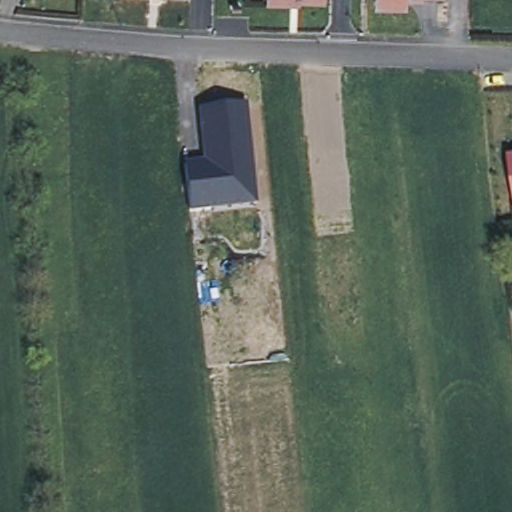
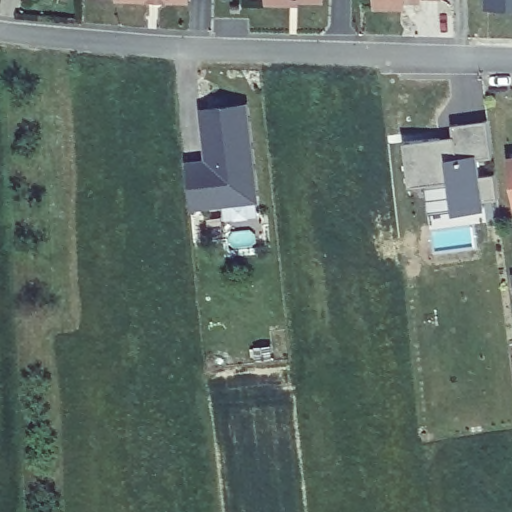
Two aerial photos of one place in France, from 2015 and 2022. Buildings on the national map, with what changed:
unchanged [(403,7),(377,6),(377,0),(419,0),(419,2),(404,1),(403,7)]
new [(485,9),(485,0),(512,0),(512,9),(485,9)]
unchanged [(250,104),(259,202),(192,210),(187,164),(205,161),(201,110),(250,104)]
new [(492,157),(476,157),(479,175),(494,174),(497,200),(483,201),(485,211),(453,215),(450,181),(410,189),(404,142),(454,136),(452,126),(487,120),(492,157)]
unchanged [(509,159),(512,158),(512,180),(509,159)]

